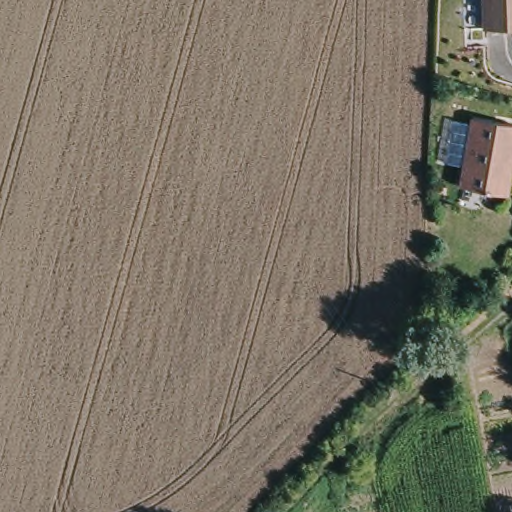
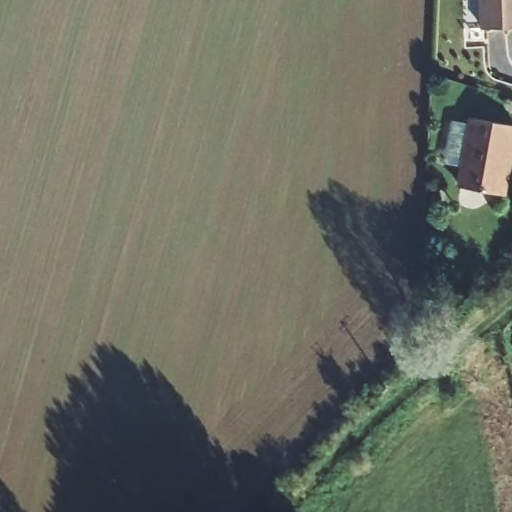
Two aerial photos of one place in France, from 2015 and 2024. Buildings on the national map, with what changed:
unchanged [(487,20),(486,0),(512,0),(512,19),(487,20)]
unchanged [(512,120),(512,184),(512,187),(457,175),(475,110),(512,120)]

